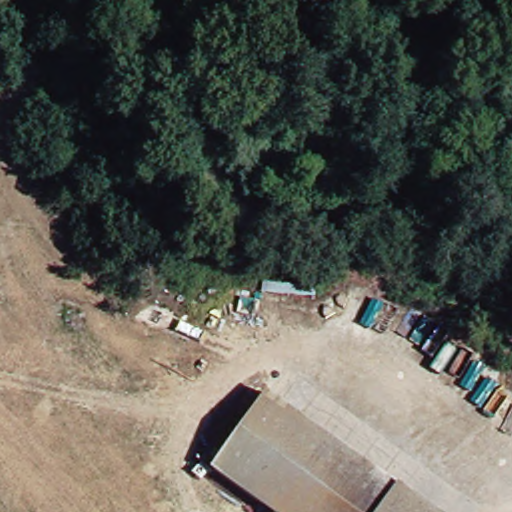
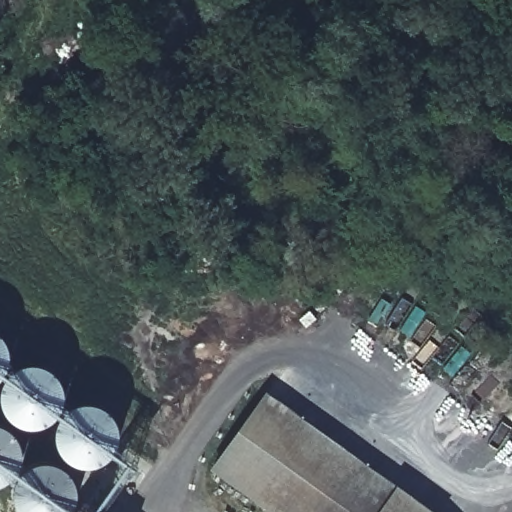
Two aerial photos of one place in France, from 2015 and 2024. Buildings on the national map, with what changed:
new [(16,508),(12,486),(0,488),(0,339),(7,346),(12,368),(34,367),(52,374),(63,388),(67,410),(84,405),(96,406),(112,418),(119,437),(112,457),(74,512),(18,512),(16,508)]
unchanged [(214,470),(267,396),(428,512),(273,512),(214,470)]
new [(87,509),(91,512),(84,512),(87,509)]

